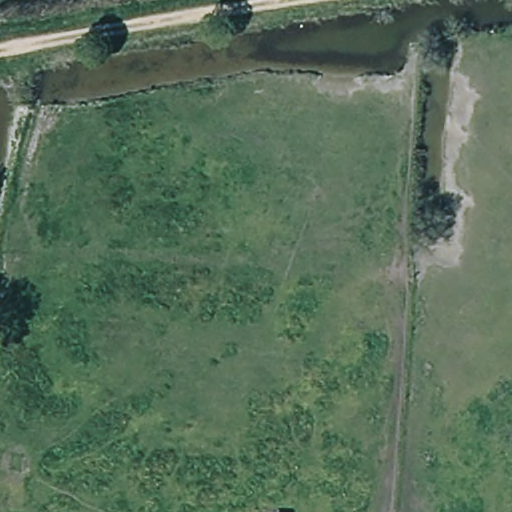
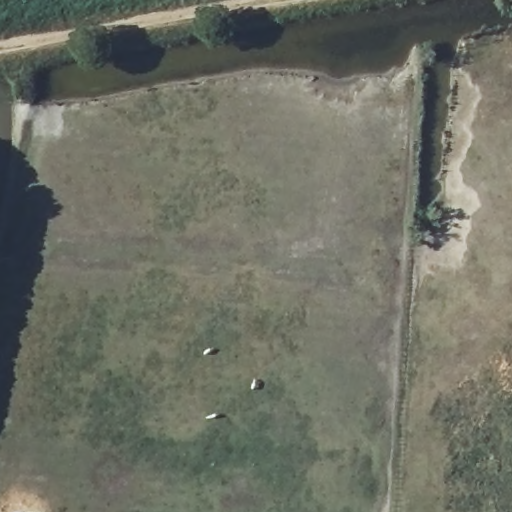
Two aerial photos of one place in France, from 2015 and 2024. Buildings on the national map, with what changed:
[]

